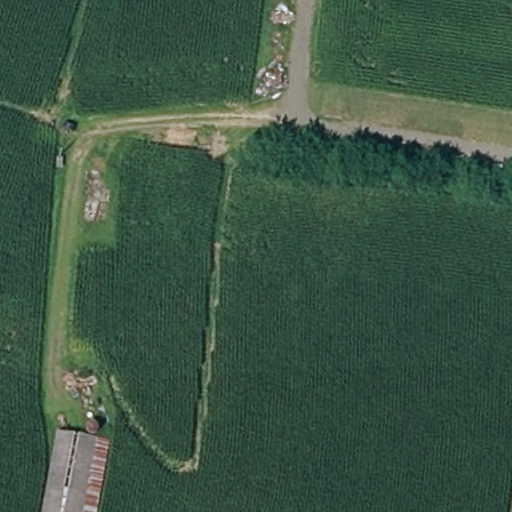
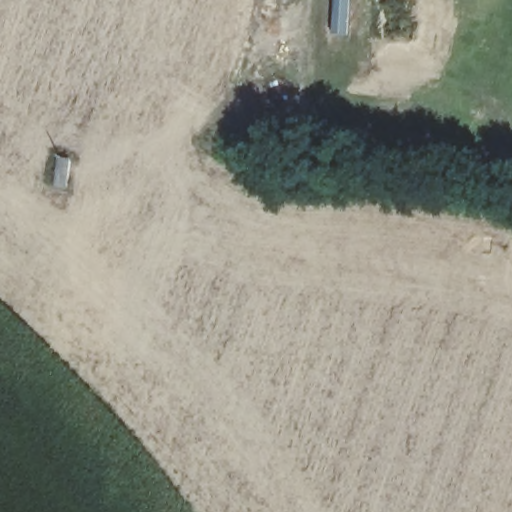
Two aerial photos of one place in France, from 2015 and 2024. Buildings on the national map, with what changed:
demolished [(60,435),(110,443),(98,512),(44,512),(60,435)]

